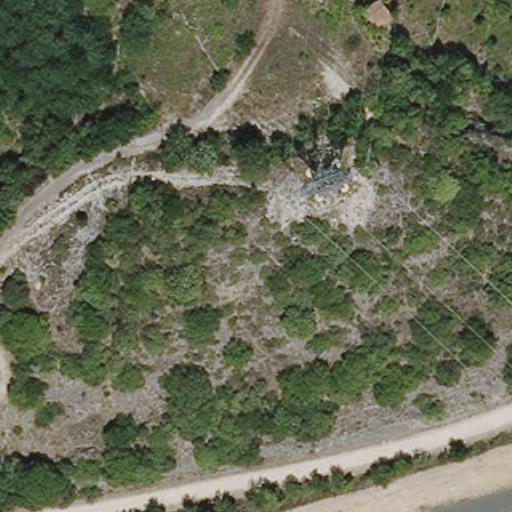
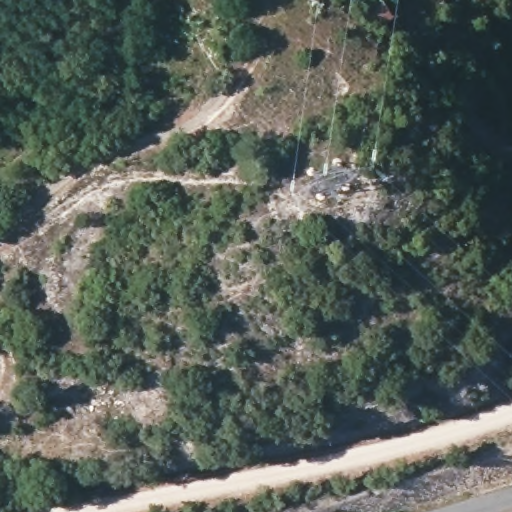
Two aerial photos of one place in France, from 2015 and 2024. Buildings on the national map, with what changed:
unchanged [(366,12),(377,0),(378,0),(392,16),(382,27),(366,12)]

